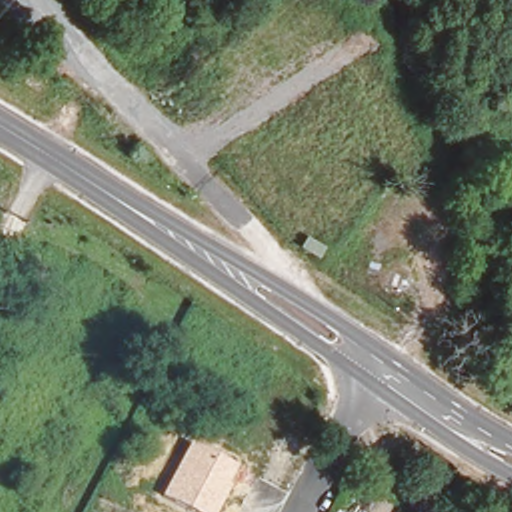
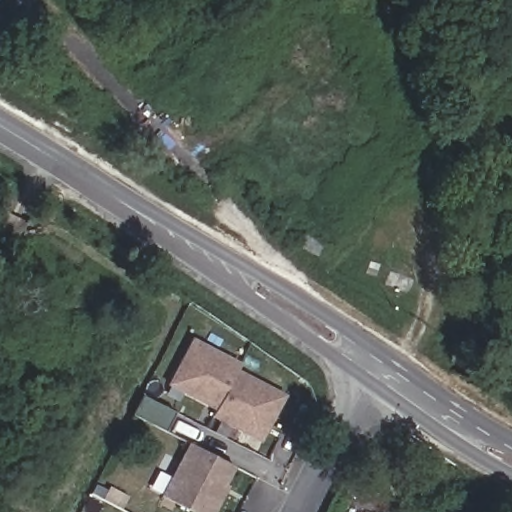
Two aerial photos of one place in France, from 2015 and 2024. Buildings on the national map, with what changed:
new [(192,336),(241,362),(237,370),(216,410),(168,385),(192,336)]
new [(216,410),(237,370),(286,395),(261,443),(212,417),(216,410)]
new [(142,396),(176,413),(167,431),(132,415),(142,396)]
unchanged [(216,512),(194,512),(161,495),(188,442),(235,465),(226,484),(230,486),(216,512)]

